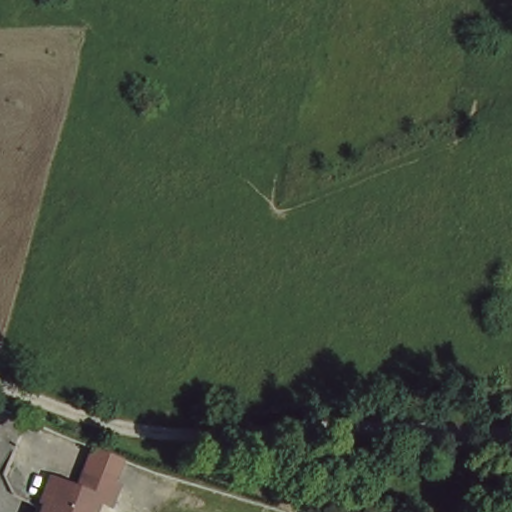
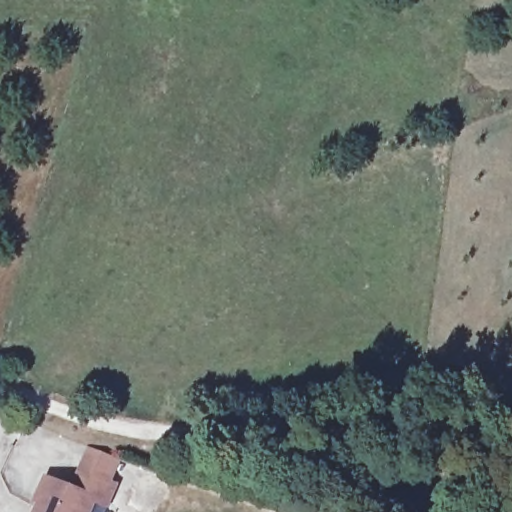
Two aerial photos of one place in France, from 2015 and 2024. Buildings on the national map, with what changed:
unchanged [(45,476),(68,485),(76,467),(108,480),(101,499),(89,495),(82,512),(31,512),(45,476)]

